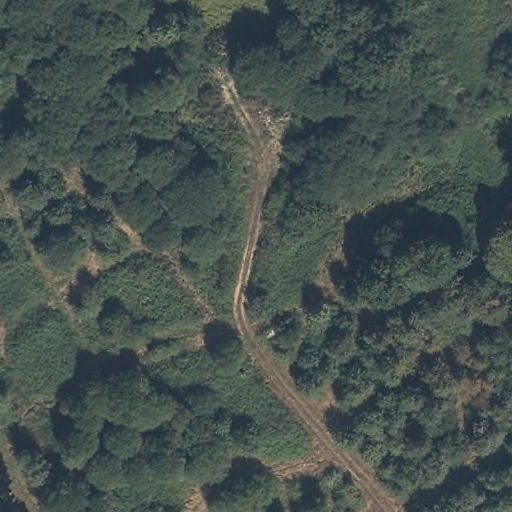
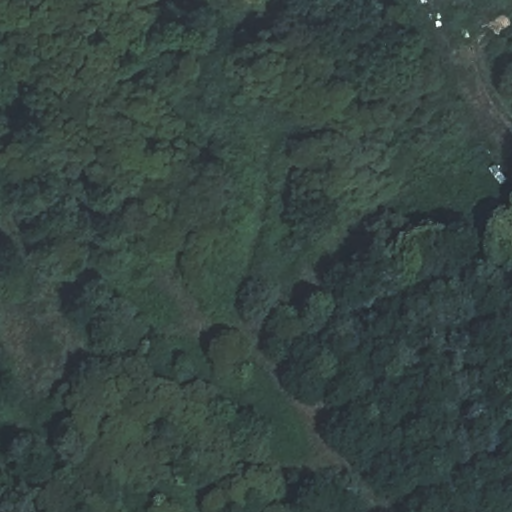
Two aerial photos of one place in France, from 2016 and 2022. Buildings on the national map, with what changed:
[]

